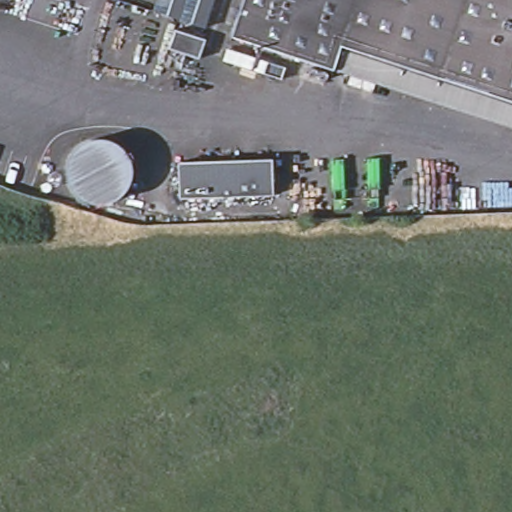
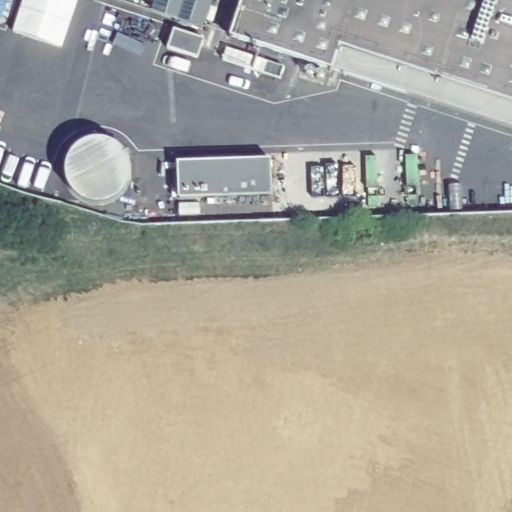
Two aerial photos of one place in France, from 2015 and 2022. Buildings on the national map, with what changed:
new [(24,35),(34,0),(88,0),(72,51),(24,35)]
unchanged [(148,6),(150,0),(215,0),(206,28),(148,6)]
unchanged [(330,70),(230,36),(241,0),(512,0),(512,103),(337,46),(330,70)]
unchanged [(175,163),(269,160),(270,199),(177,201),(175,163)]

